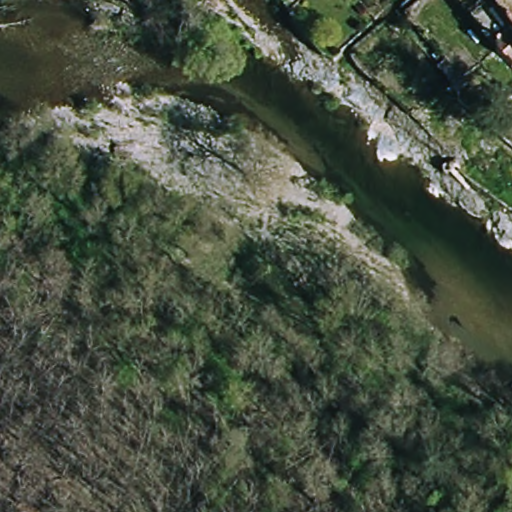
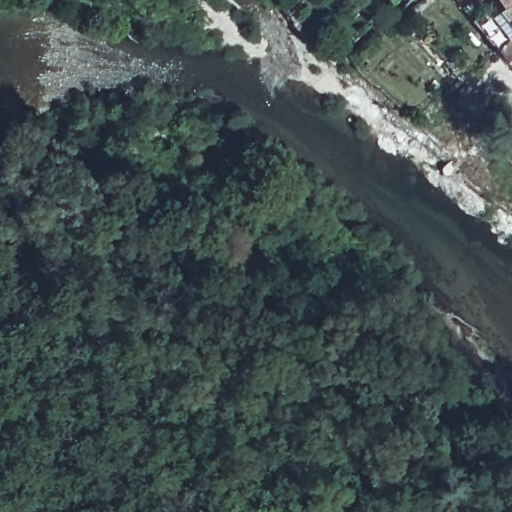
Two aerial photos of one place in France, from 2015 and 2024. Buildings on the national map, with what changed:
unchanged [(488,4),(492,0),(512,0),(512,56),(499,40),(510,29),(488,4)]

